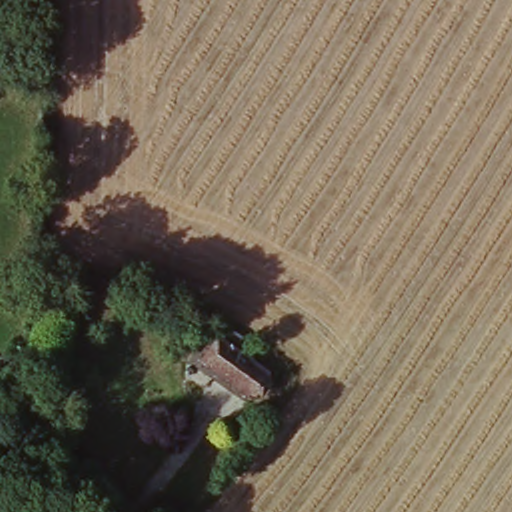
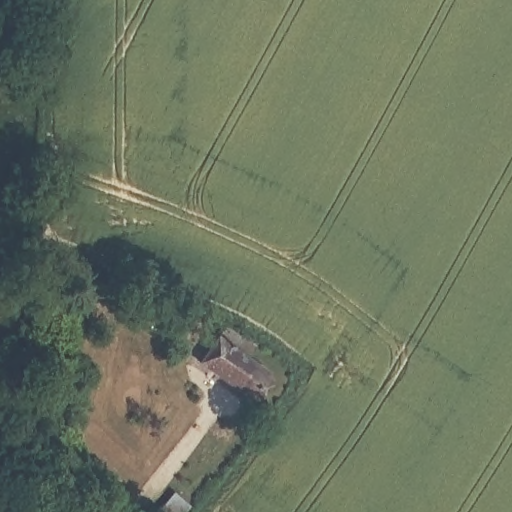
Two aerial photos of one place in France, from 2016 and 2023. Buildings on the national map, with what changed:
unchanged [(249,399),(202,370),(215,348),(221,338),(247,352),(241,363),(265,377),(249,399)]
unchanged [(166,512),(158,512),(161,508),(166,512)]

